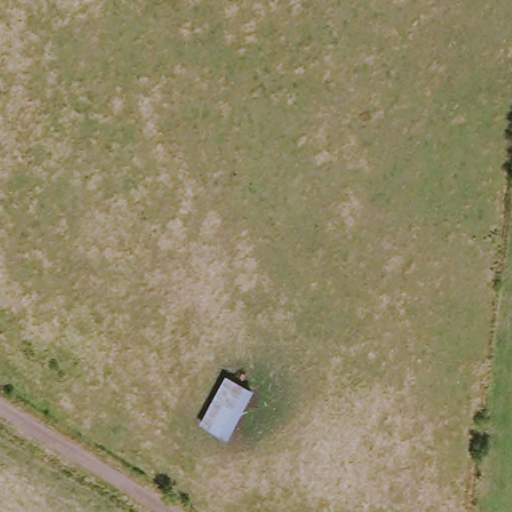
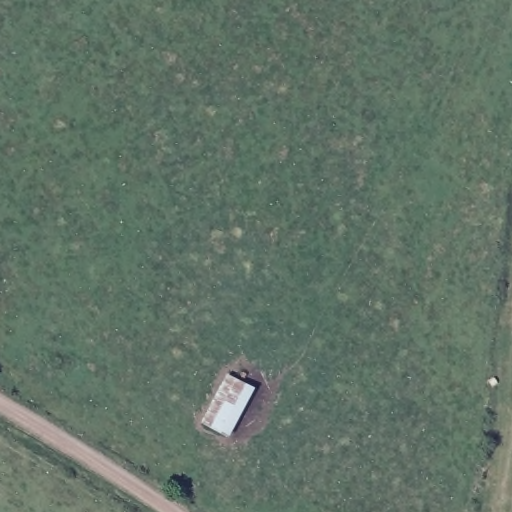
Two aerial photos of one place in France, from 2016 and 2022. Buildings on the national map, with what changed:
unchanged [(218,433),(198,417),(230,376),(250,392),(218,433)]

